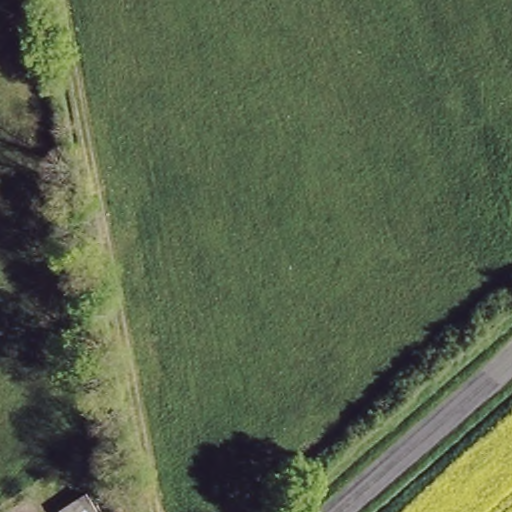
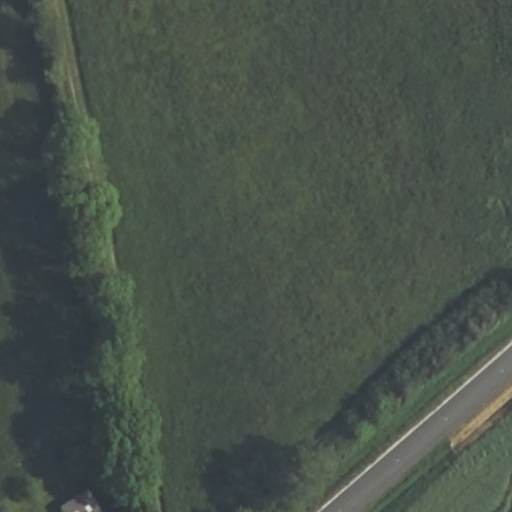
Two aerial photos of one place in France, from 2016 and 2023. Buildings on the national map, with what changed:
unchanged [(86,488),(101,512),(57,512),(54,505),(86,488)]

